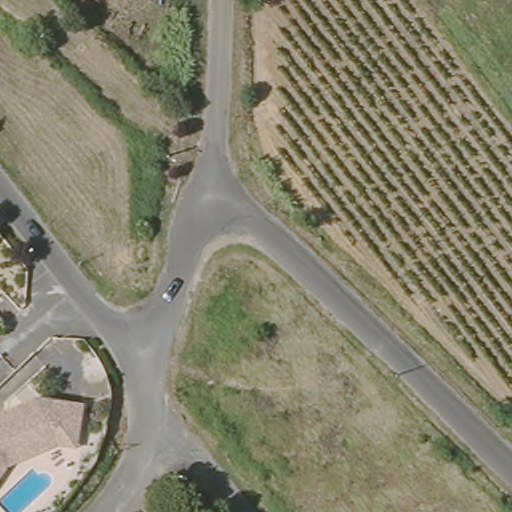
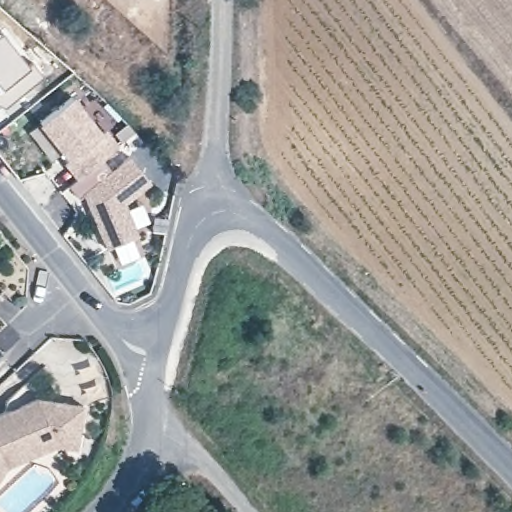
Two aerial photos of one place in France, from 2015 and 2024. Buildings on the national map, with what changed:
new [(0,106),(0,29),(2,31),(29,65),(34,62),(44,76),(4,108),(0,106)]
new [(107,248),(83,193),(79,197),(70,186),(77,179),(65,164),(69,160),(39,124),(74,96),(103,133),(107,129),(119,145),(102,160),(111,171),(130,156),(152,184),(127,204),(140,235),(107,248)]
unchanged [(47,447),(4,464),(0,470),(0,407),(31,394),(78,410),(68,436),(61,451),(47,447)]

